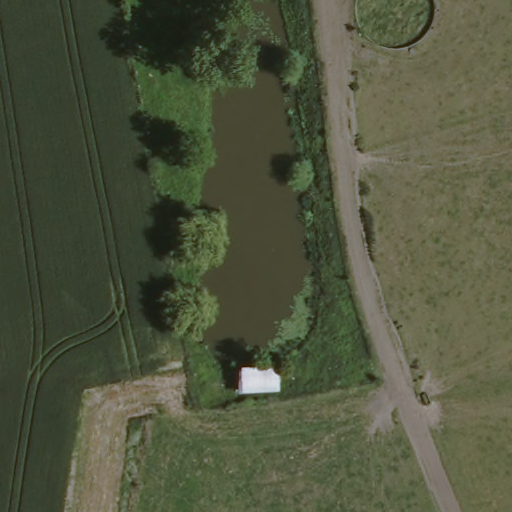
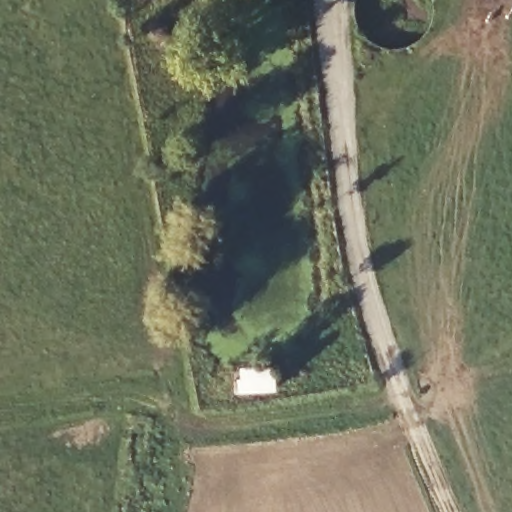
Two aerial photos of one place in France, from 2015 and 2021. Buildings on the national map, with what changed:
unchanged [(275,368),(278,398),(235,403),(236,372),(275,368)]

